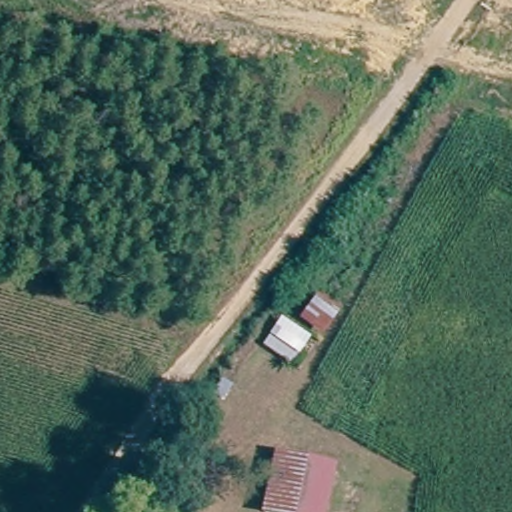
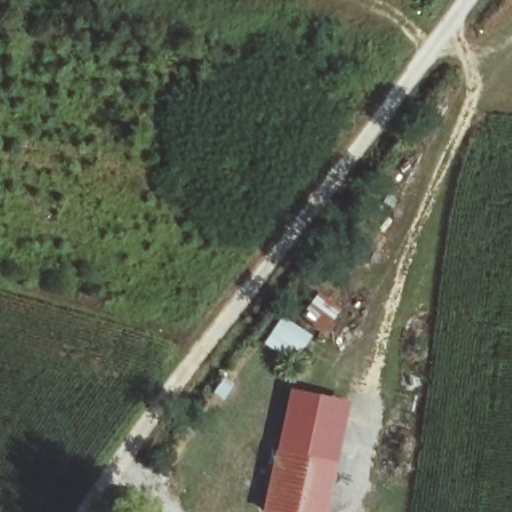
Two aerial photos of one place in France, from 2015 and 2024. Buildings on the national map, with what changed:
new [(280,316),(311,336),(291,362),(262,343),(280,316)]
unchanged [(222,397),(215,393),(222,384),(229,388),(222,397)]
new [(283,453),(276,452),(289,390),(350,402),(332,464),(283,453)]
unchanged [(332,464),(321,512),(270,512),(283,453),(332,464)]

